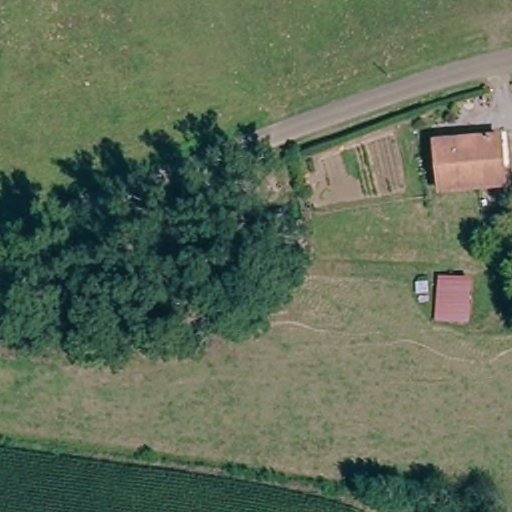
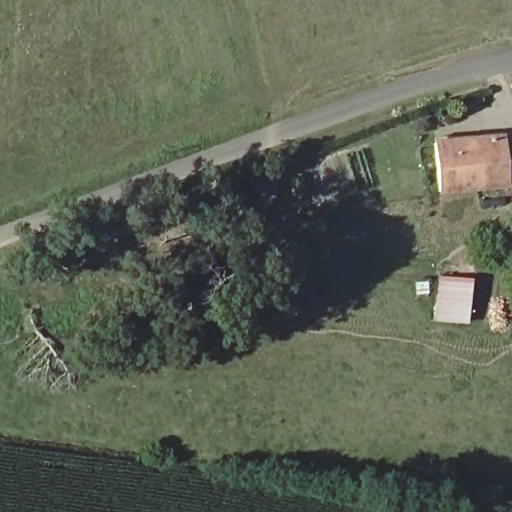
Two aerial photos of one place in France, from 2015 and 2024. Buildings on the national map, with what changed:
unchanged [(511,142),(512,152),(512,192),(448,198),(445,147),(511,142)]
unchanged [(469,321),(435,318),(438,277),(440,277),(439,272),(473,275),(469,321)]

